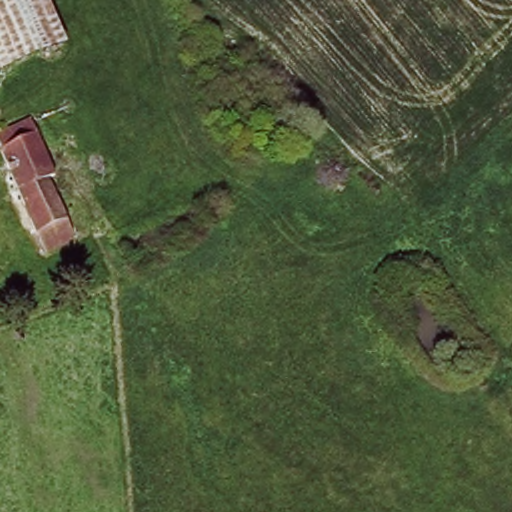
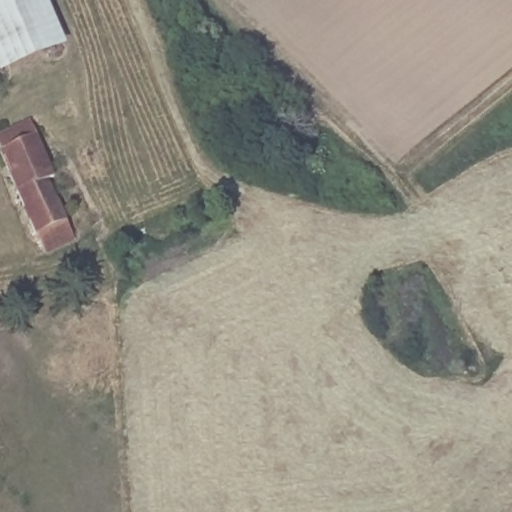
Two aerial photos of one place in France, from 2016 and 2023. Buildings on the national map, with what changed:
unchanged [(58,39),(0,71),(0,70),(0,0),(40,0),(58,39)]
unchanged [(27,230),(0,163),(0,135),(15,128),(21,141),(40,132),(58,176),(47,181),(61,216),(70,238),(37,252),(27,230)]

